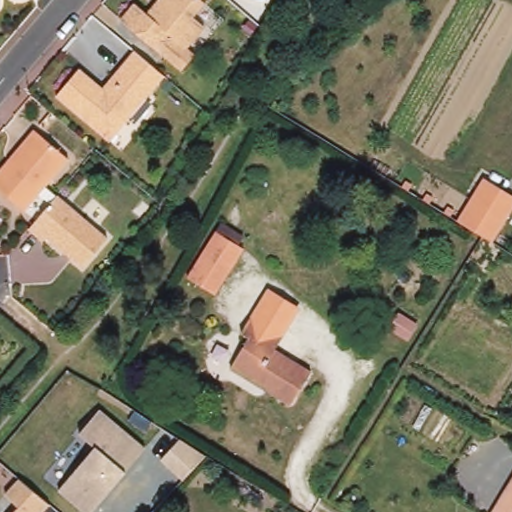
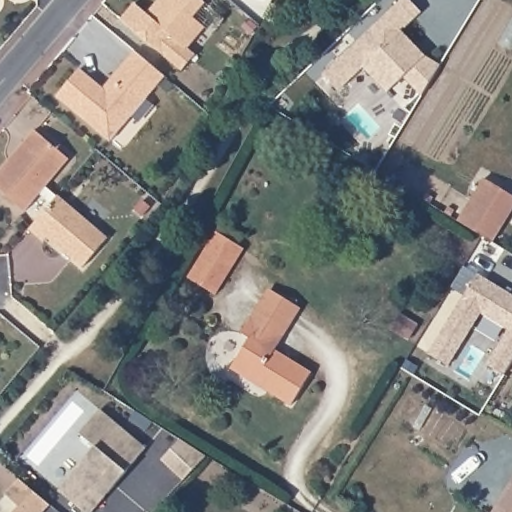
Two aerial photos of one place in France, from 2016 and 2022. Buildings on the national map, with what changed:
unchanged [(193,16),(204,26),(185,48),(174,39),(161,53),(118,17),(131,1),(143,11),(153,0),(203,0),(205,2),(193,16)]
new [(416,0),(423,9),(403,27),(427,52),(441,62),(423,92),(406,74),(389,90),(365,64),(340,87),(325,71),(400,0),(416,0)]
unchanged [(100,91),(107,82),(130,54),(161,79),(107,145),(54,100),(77,72),(100,91)]
unchanged [(67,161),(24,212),(0,191),(0,169),(6,162),(21,144),(32,131),(67,161)]
unchanged [(512,210),(492,244),(481,237),(458,223),(483,181),(512,197),(512,210)]
unchanged [(56,197),(107,239),(81,269),(44,237),(40,242),(27,230),(56,197)]
unchanged [(242,251),(214,297),(186,280),(215,234),(242,251)]
new [(512,297),(512,362),(503,376),(486,365),(507,331),(480,313),(447,367),(427,355),(476,275),(512,297)]
unchanged [(240,331),(265,287),(299,310),(274,347),(310,370),(290,403),(229,366),(248,336),(240,331)]
unchanged [(58,491),(93,447),(79,433),(100,410),(143,447),(89,512),(83,512),(58,491)]
unchanged [(159,459),(180,436),(206,457),(184,482),(159,459)]
unchanged [(13,505),(3,495),(18,478),(48,503),(42,512),(8,512),(13,505)]
unchanged [(512,480),(512,512),(492,512),(512,480)]

